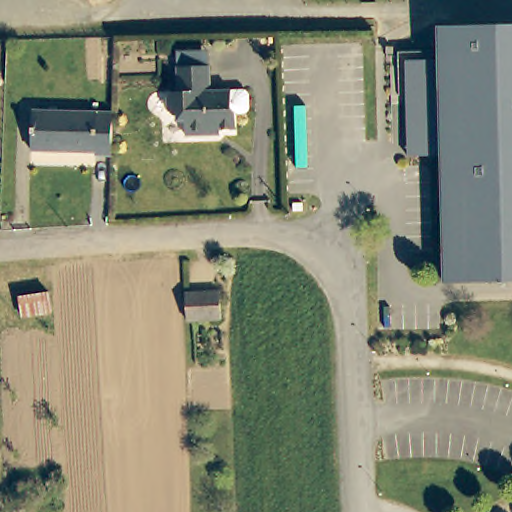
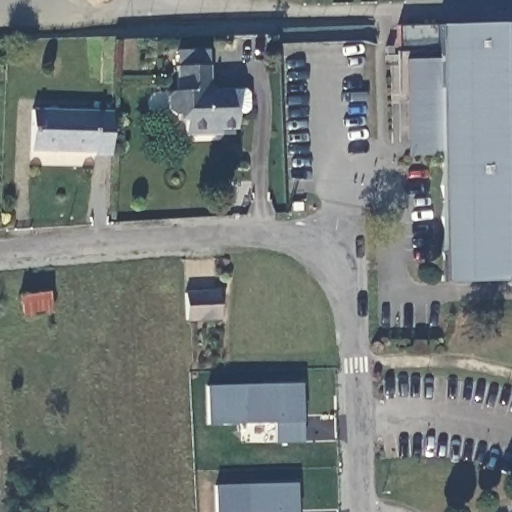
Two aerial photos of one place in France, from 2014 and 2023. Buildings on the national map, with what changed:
unchanged [(442,281),(448,266),(442,252),(447,236),(439,217),(444,205),(437,188),(443,174),(438,156),(405,157),(404,62),(434,61),(435,29),(512,26),(512,280),(442,281)]
unchanged [(254,97),(252,114),(248,117),(240,117),(240,131),(226,131),(222,131),(213,140),(186,140),(186,121),(167,121),(166,95),(176,94),(176,73),(175,57),(207,57),(208,72),(208,92),(225,92),(248,91),(254,97)]
unchanged [(110,152),(91,152),(91,147),(30,145),(31,107),(112,110),(110,152)]
unchanged [(222,288),(224,317),(183,317),(181,290),(222,288)]
unchanged [(23,302),(51,297),(54,316),(25,320),(23,302)]
new [(305,386),(307,445),(280,446),(279,425),(212,427),(211,388),(305,386)]
new [(301,512),(220,512),(219,487),(300,486),(301,512)]

